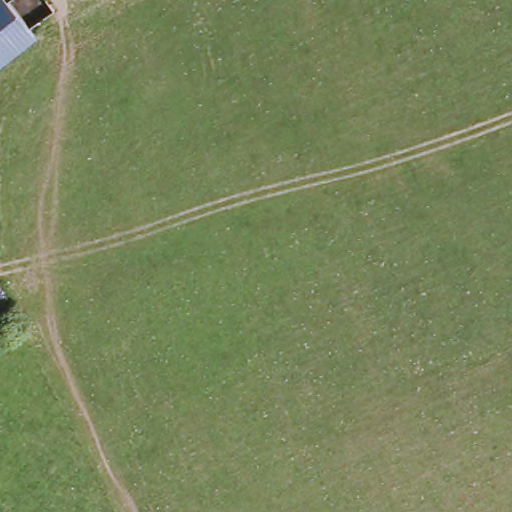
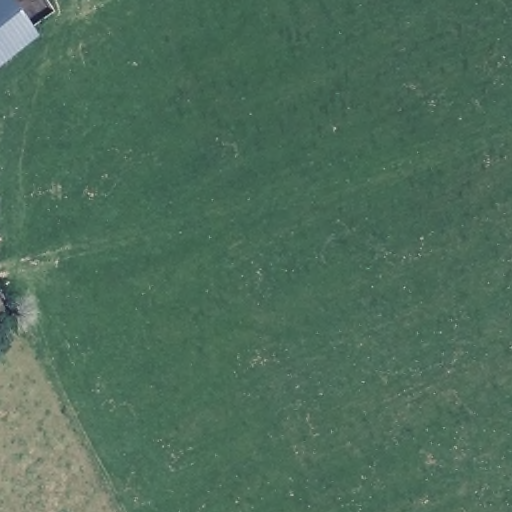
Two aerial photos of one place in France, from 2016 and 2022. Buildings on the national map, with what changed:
unchanged [(0,65),(0,0),(9,0),(38,32),(0,65)]

